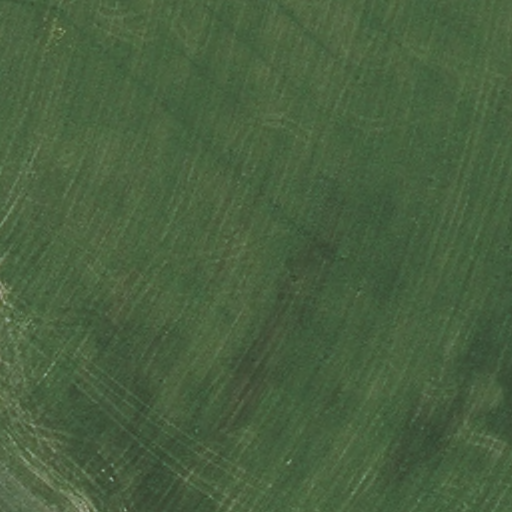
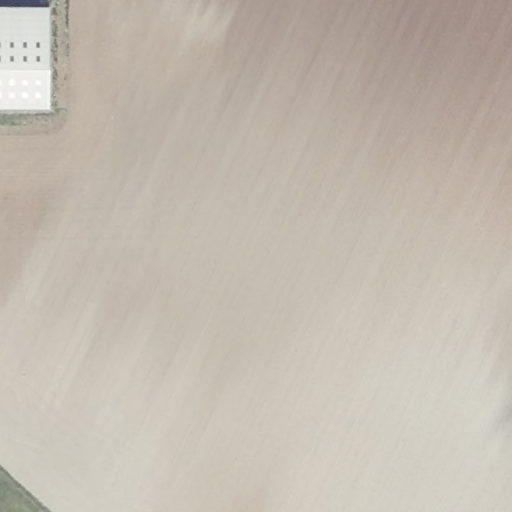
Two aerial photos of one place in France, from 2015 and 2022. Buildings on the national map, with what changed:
new [(47,106),(0,106),(0,4),(48,4),(47,106)]

